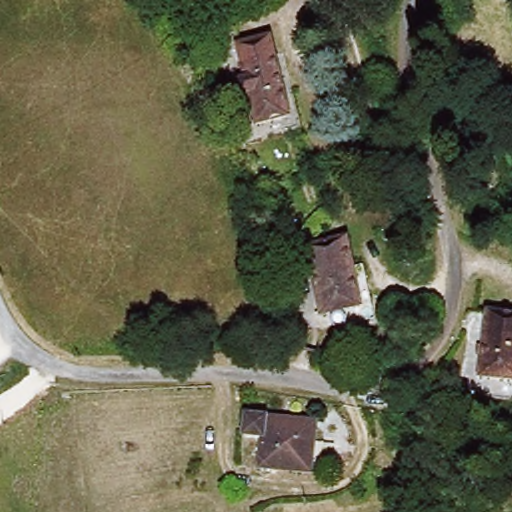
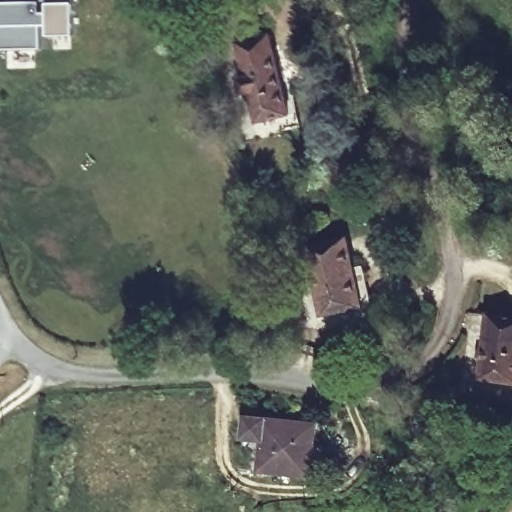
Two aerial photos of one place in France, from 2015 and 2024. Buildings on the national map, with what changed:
new [(41,14),(48,14),(47,0),(73,0),(75,36),(48,37),(48,25),(42,25),(42,49),(0,50),(0,4),(41,3),(41,14)]
unchanged [(242,92),(239,77),(246,76),(238,41),(272,34),(289,114),(256,121),(249,90),(242,92)]
unchanged [(312,249),(340,243),(345,270),(360,267),(367,306),(325,314),(312,249)]
unchanged [(512,311),(512,397),(476,393),(488,308),(512,311)]
unchanged [(269,440),(249,437),(251,416),(272,417),(272,419),(321,424),(315,474),(266,468),(269,440)]

